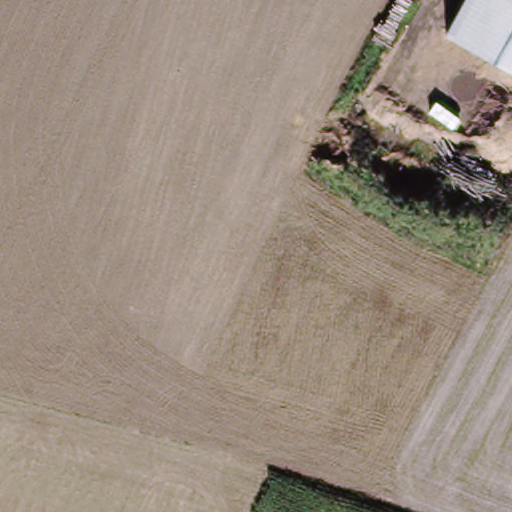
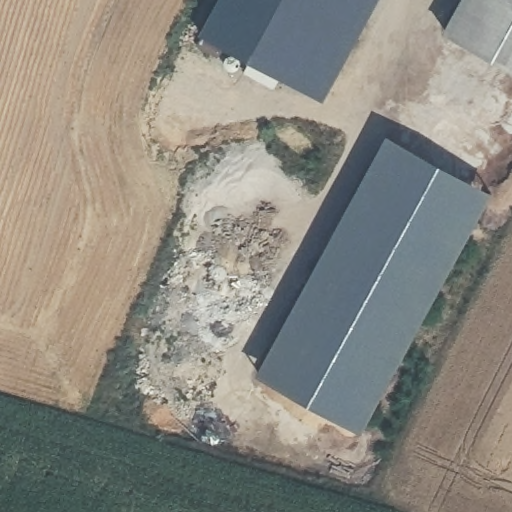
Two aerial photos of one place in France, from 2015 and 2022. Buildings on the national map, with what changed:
unchanged [(445,36),(464,0),(512,0),(512,72),(445,36)]
new [(387,134),(492,192),(360,431),(257,375),(387,134)]

